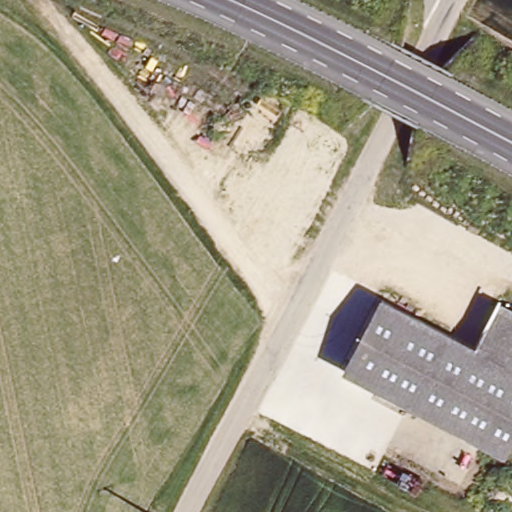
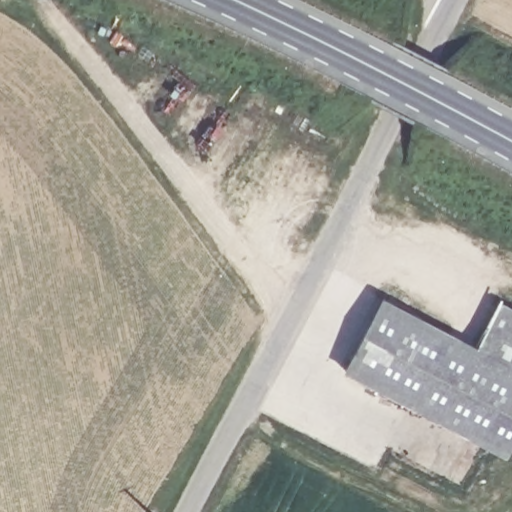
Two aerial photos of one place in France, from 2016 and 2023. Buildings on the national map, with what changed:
unchanged [(343,370),(379,300),(469,348),(512,371),(512,430),(499,452),(343,370)]
unchanged [(512,312),(512,371),(469,348),(493,302),(512,312)]

